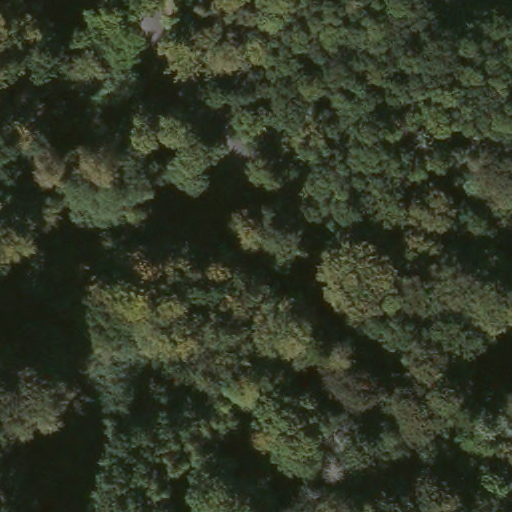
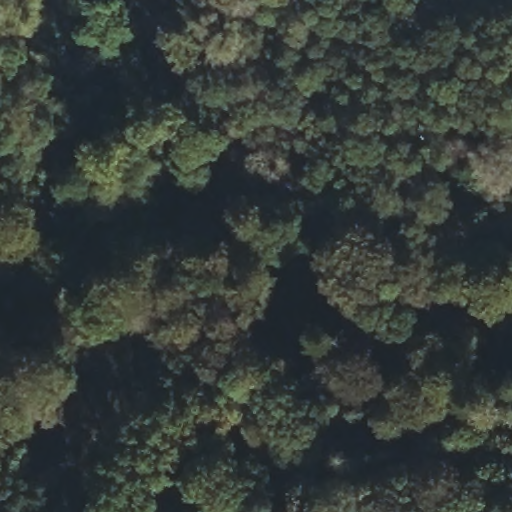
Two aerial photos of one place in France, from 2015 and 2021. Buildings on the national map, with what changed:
[]

